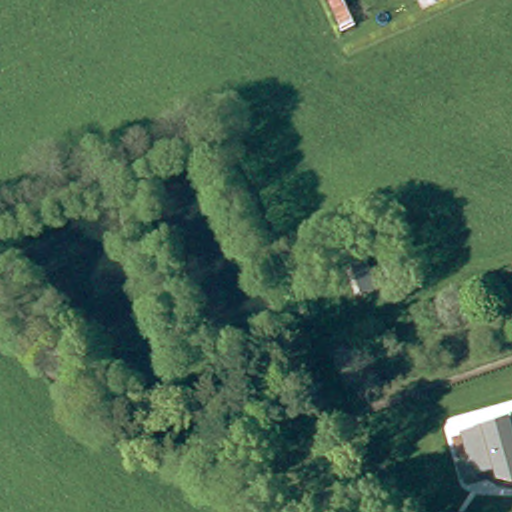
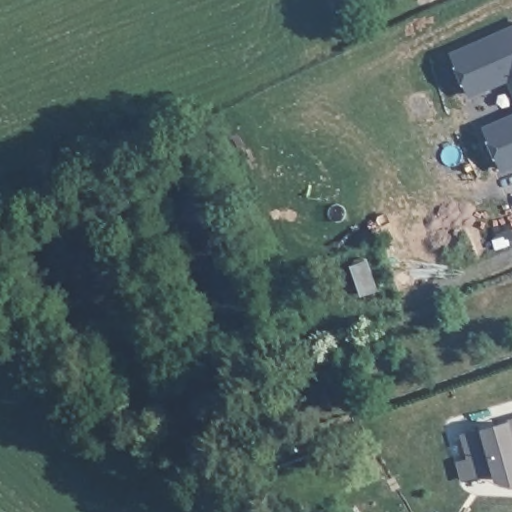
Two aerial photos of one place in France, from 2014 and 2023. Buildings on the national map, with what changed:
new [(512,82),(509,75),(471,92),(454,52),(512,26),(512,82)]
new [(486,127),(512,116),(512,163),(504,166),(486,127)]
new [(368,258),(380,294),(359,301),(346,265),(368,258)]
unchanged [(494,471),(461,481),(457,460),(467,457),(461,433),(483,426),(512,418),(512,484),(497,481),(494,471)]

